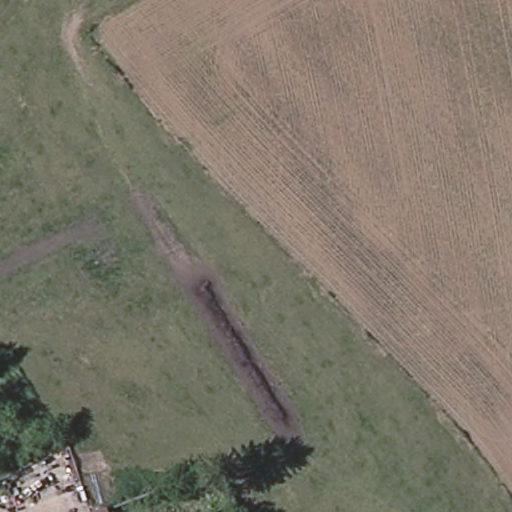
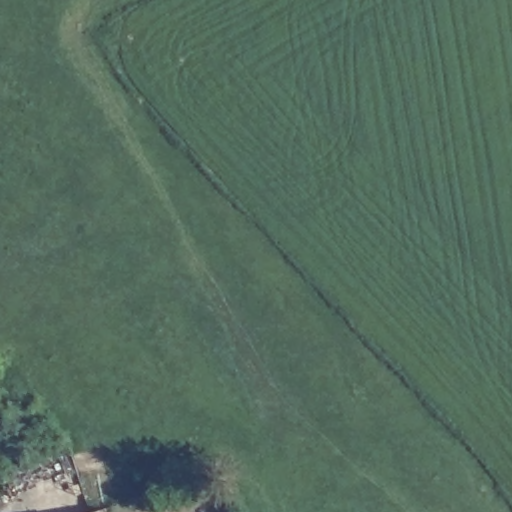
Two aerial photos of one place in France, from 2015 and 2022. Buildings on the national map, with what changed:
unchanged [(103,512),(81,512),(101,505),(103,512)]

